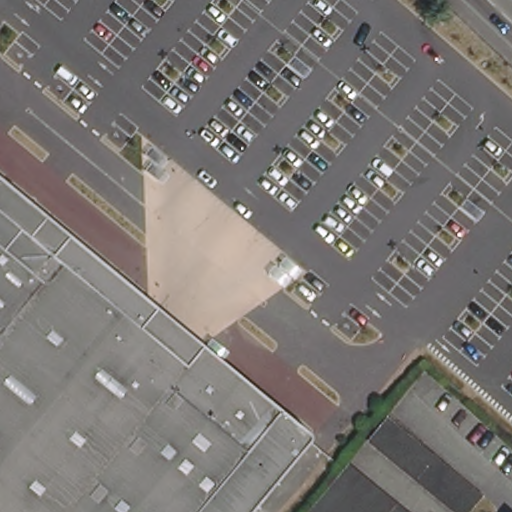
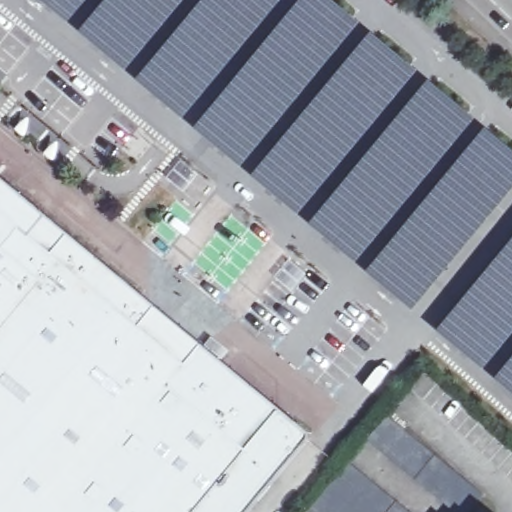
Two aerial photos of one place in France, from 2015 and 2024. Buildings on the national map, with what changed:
new [(68,22),(41,0),(87,0),(68,22)]
new [(103,0),(184,0),(125,71),(78,31),(103,0)]
new [(201,0),(281,0),(215,82),(183,119),(136,79),(201,0)]
new [(299,0),(333,0),(360,22),(279,122),(241,167),(193,127),(299,0)]
new [(371,32),(418,71),(334,172),(298,215),(250,176),(371,32)]
new [(429,79),(475,119),(401,210),(356,262),(308,223),(429,79)]
new [(486,126),(512,149),(512,192),(498,210),(412,311),(365,272),(486,126)]
unchanged [(0,512),(0,179),(279,413),(197,512),(0,512)]
new [(512,237),(512,335),(483,369),(434,330),(512,237)]
new [(512,356),(512,393),(494,378),(512,356)]
unchanged [(382,413),(476,491),(457,512),(455,512),(363,437),(382,413)]
unchanged [(344,461),(407,512),(307,512),(304,510),(344,461)]

